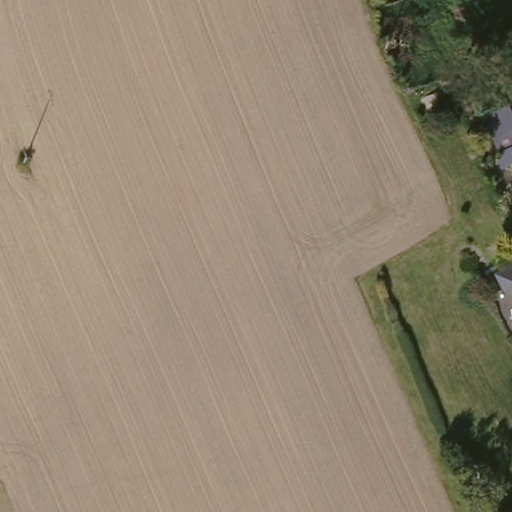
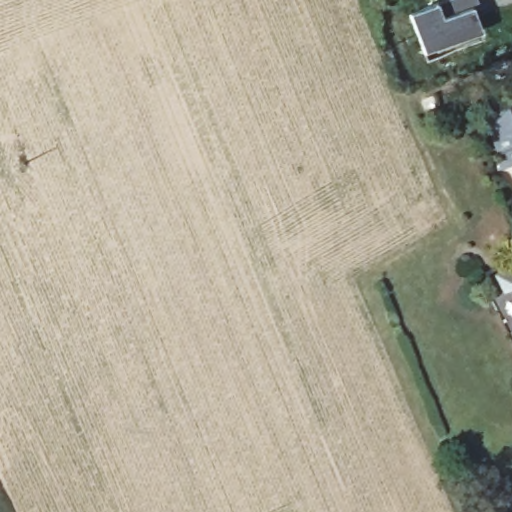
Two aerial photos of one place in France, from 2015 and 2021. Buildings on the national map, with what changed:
new [(436,6),(440,20),(469,10),(483,40),(428,62),(410,15),(436,6)]
unchanged [(493,117),(512,110),(512,152),(506,155),(493,117)]
unchanged [(510,172),(505,162),(509,161),(506,155),(512,152),(512,172),(510,172)]
unchanged [(510,287),(512,286),(512,293),(510,287)]

